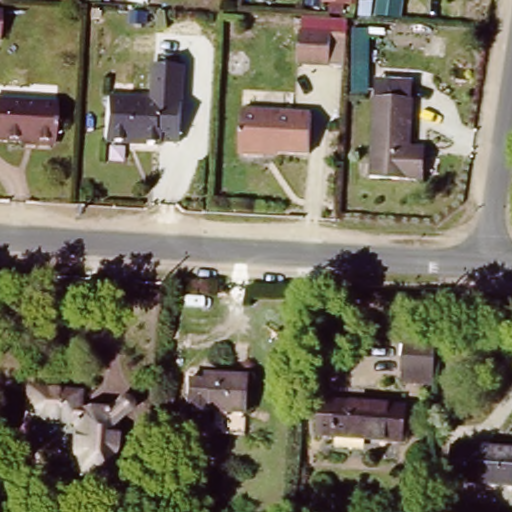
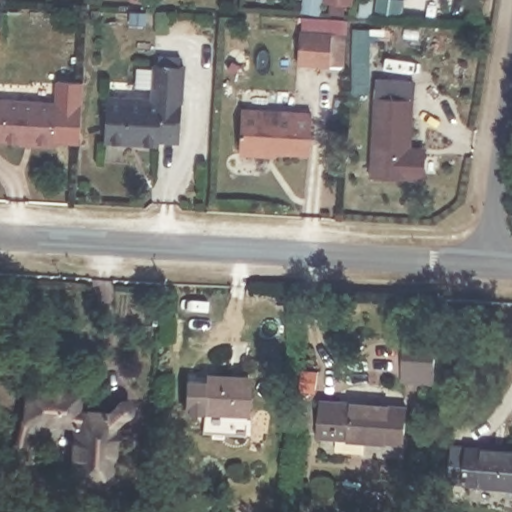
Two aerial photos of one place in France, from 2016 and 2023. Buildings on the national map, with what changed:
unchanged [(333,32),(331,62),(299,60),(300,29),(333,32)]
unchanged [(175,95),(183,95),(183,100),(178,140),(156,139),(156,143),(105,139),(108,95),(174,100),(175,95)]
unchanged [(366,176),(369,95),(409,96),(408,149),(423,148),(423,181),(366,176)]
unchanged [(17,149),(17,141),(0,141),(0,99),(52,102),(50,143),(50,150),(17,149)]
unchanged [(246,112),(317,116),(315,155),(269,153),(268,158),(244,155),(246,112)]
unchanged [(434,376),(399,374),(402,334),(437,336),(434,376)]
unchanged [(247,372),(245,410),(203,408),(206,370),(247,372)]
unchanged [(72,423),(28,420),(28,390),(78,394),(77,410),(104,411),(109,406),(114,407),(117,411),(113,419),(108,477),(69,475),(72,423)]
unchanged [(402,400),(400,440),(316,435),(317,397),(402,400)]
unchanged [(512,489),(455,487),(457,452),(512,454),(512,489)]

